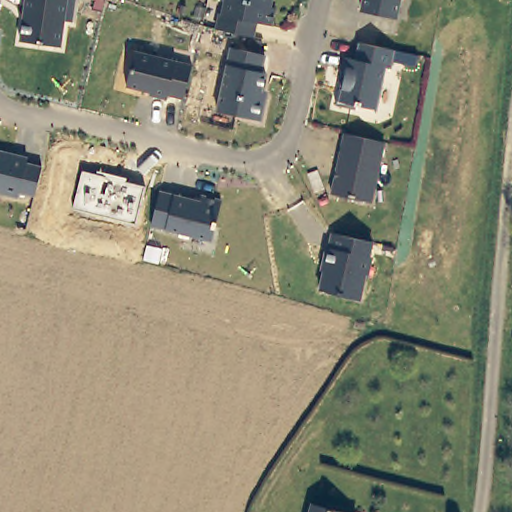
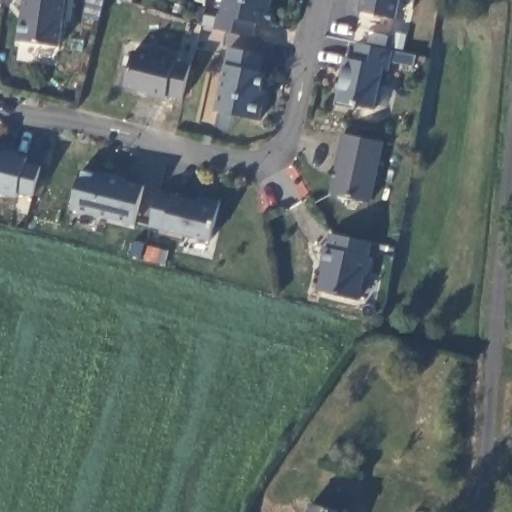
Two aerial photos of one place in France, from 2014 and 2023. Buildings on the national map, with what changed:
unchanged [(65,21),(61,45),(19,40),(23,0),(77,0),(73,22),(65,21)]
unchanged [(244,9),(241,24),(209,17),(213,1),(215,1),(216,0),(267,0),(264,14),(244,9)]
unchanged [(347,18),(351,2),(352,0),(388,0),(381,26),(347,18)]
unchanged [(385,68),(378,109),(337,103),(344,56),(353,58),(356,43),(395,49),(392,68),(385,68)]
unchanged [(262,89),(267,91),(262,120),(216,111),(228,46),(266,54),(262,89)]
unchanged [(184,99),(125,88),(131,51),(190,63),(184,99)]
unchanged [(372,201),(332,194),(344,132),(384,141),(372,201)]
unchanged [(0,189),(0,152),(25,157),(24,163),(40,165),(32,194),(0,189)]
unchanged [(135,223),(73,208),(82,169),(100,174),(101,169),(125,177),(124,180),(142,187),(135,223)]
unchanged [(211,239),(153,225),(160,189),(198,199),(200,194),(220,199),(211,239)]
unchanged [(359,298),(320,290),(330,234),(372,243),(359,298)]
unchanged [(312,506),(329,512),(310,512),(312,506)]

